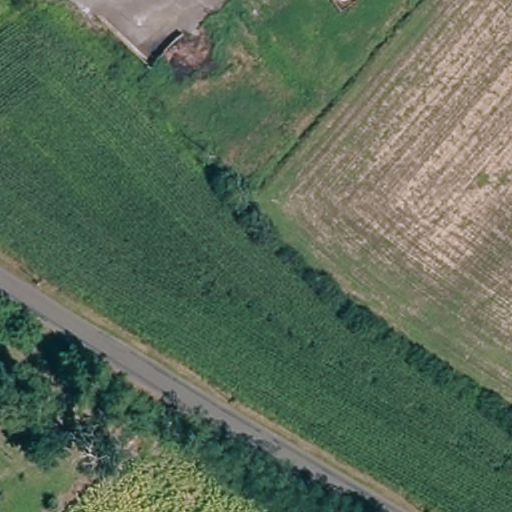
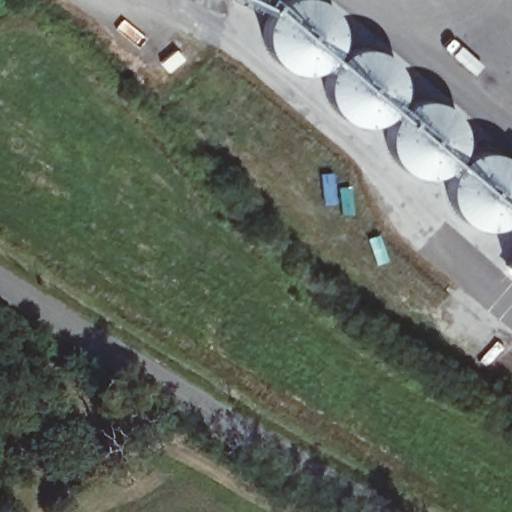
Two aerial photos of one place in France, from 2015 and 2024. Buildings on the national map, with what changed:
new [(333,14),(338,23),(339,31),(338,43),(333,53),(323,63),(316,69),(302,71),(289,70),(280,65),(270,58),(264,47),(260,35),(262,23),(266,12),(276,2),(280,0),(320,0),(327,5),(333,14)]
new [(370,47),(380,50),(387,55),(395,65),(400,74),(401,85),(398,99),(392,109),(384,116),(375,121),(361,123),(350,121),(338,116),(330,107),(325,98),(322,88),(323,78),(327,67),(334,58),(341,52),(351,48),(359,45),(370,47)]
new [(438,100),(445,104),(453,111),(460,122),(462,133),(462,144),(457,156),(446,167),(436,173),(425,174),(413,174),(401,167),(393,160),(386,149),(384,133),(387,122),(396,110),(401,104),(410,100),(420,98),(428,98),(438,100)]
new [(506,157),(512,162),(512,217),(503,223),(489,228),(473,225),(457,216),(450,205),(445,194),(446,179),(453,169),(461,159),(470,154),(479,150),(488,150),(499,153),(506,157)]
new [(512,261),(512,269),(508,266),(512,261)]

